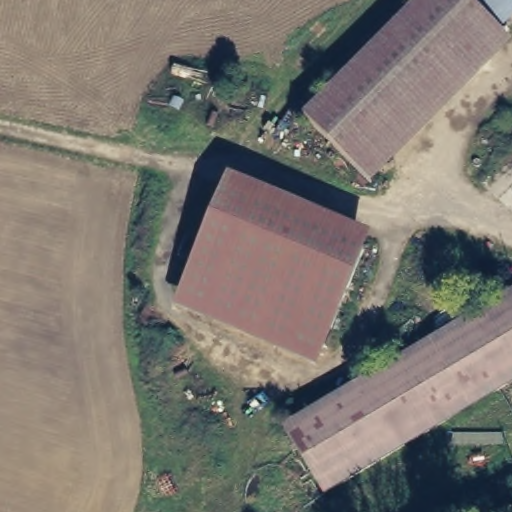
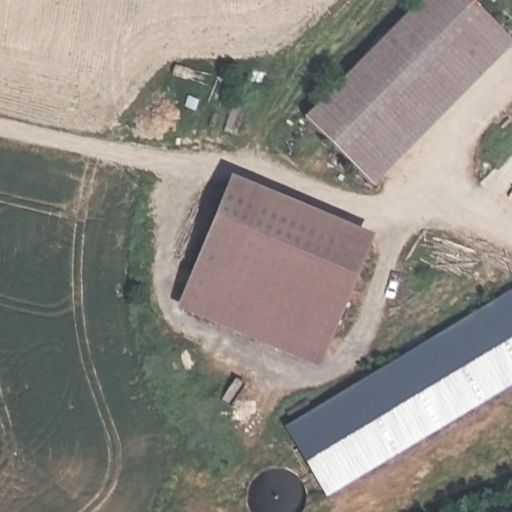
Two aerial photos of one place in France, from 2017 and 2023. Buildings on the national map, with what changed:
unchanged [(421,0),(453,0),(487,35),(502,49),(363,186),(300,119),(421,0)]
unchanged [(487,35),(453,0),(485,0),(503,19),(487,35)]
unchanged [(375,236),(319,368),(177,309),(231,178),(375,236)]
unchanged [(512,294),(512,388),(323,497),(283,427),(512,294)]

